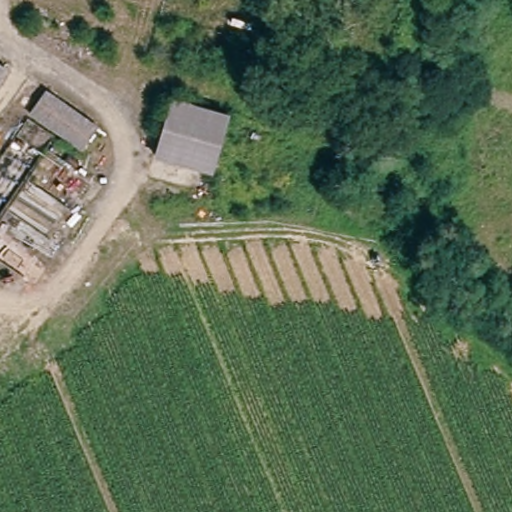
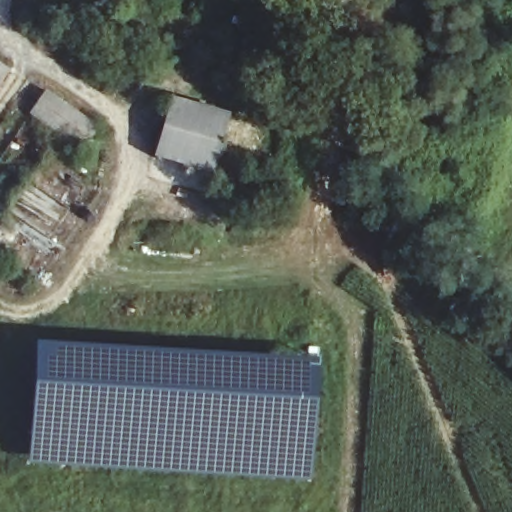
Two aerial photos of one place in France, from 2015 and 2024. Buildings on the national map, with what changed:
unchanged [(8,81),(0,93),(0,75),(8,81)]
unchanged [(95,130),(77,156),(29,121),(48,96),(95,130)]
unchanged [(225,124),(210,177),(154,162),(168,107),(225,124)]
new [(29,462),(36,342),(317,360),(310,482),(29,462)]

